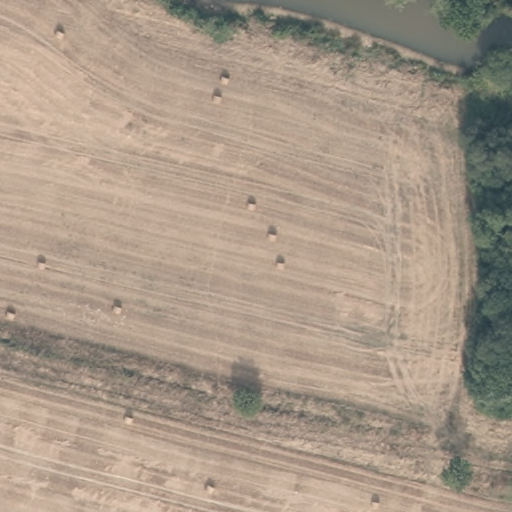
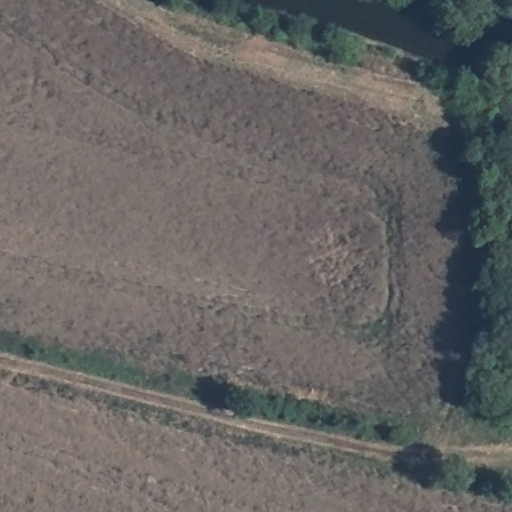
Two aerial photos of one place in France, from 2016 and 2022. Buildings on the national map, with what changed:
unchanged [(472,1),(473,0),(494,0),(491,7),(472,1)]

